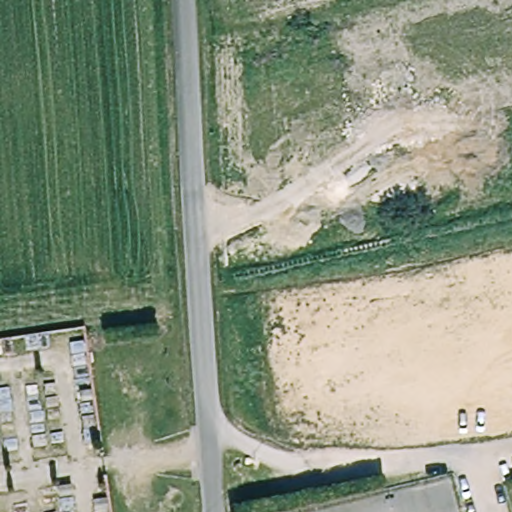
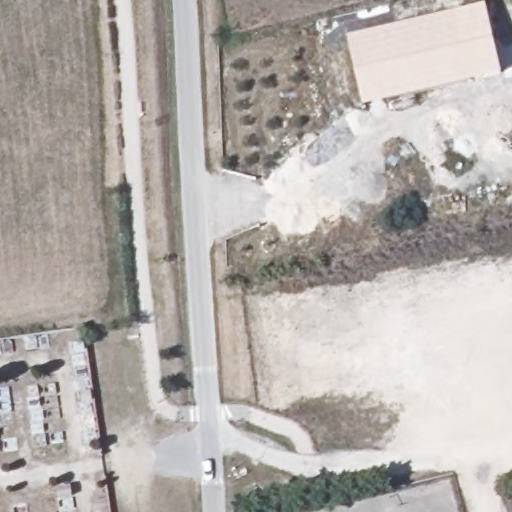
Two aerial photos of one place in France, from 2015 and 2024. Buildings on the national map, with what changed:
new [(487,3),(502,74),(362,106),(348,35),(487,3)]

